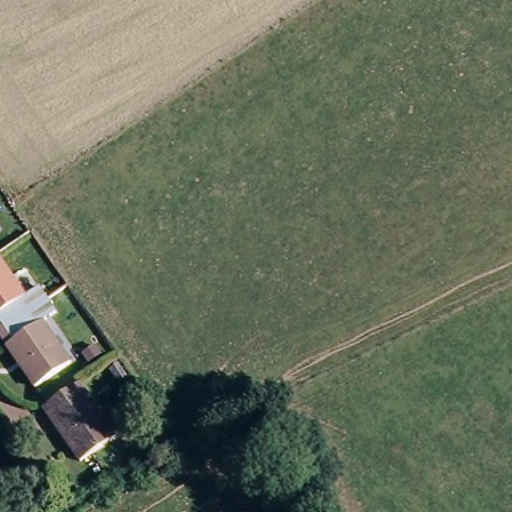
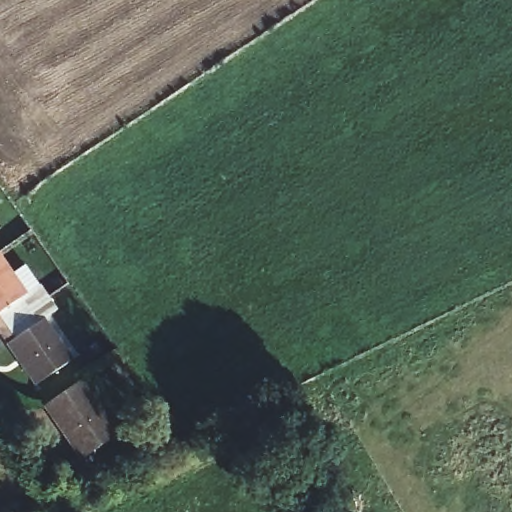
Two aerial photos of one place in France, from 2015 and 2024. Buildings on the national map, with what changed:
unchanged [(26,292),(41,282),(49,294),(0,328),(0,256),(26,292)]
unchanged [(49,294),(57,307),(44,317),(72,359),(37,382),(0,329),(0,328),(49,294)]
unchanged [(78,375),(117,432),(81,455),(42,399),(78,375)]

